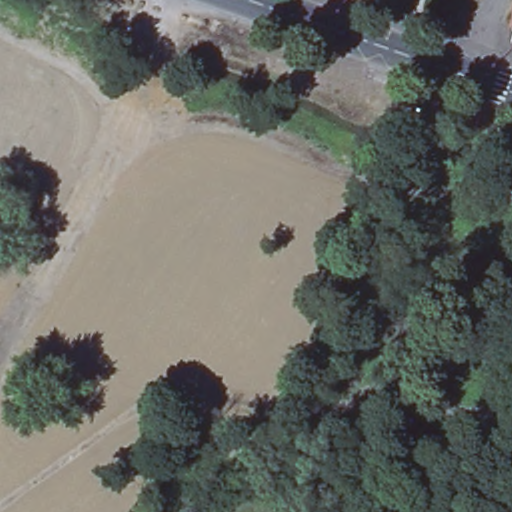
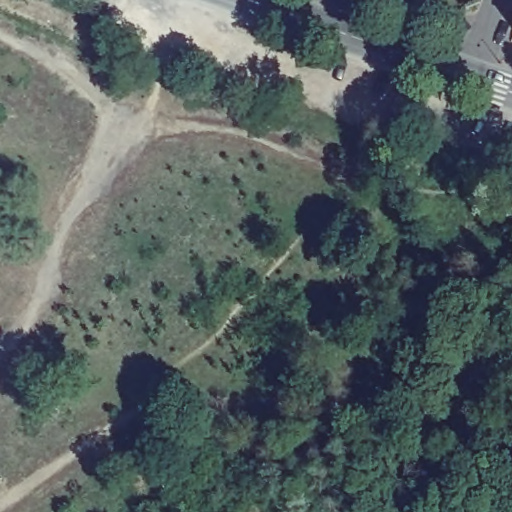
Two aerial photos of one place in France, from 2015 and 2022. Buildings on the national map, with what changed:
unchanged [(512,29),(512,32),(511,32),(512,29)]

